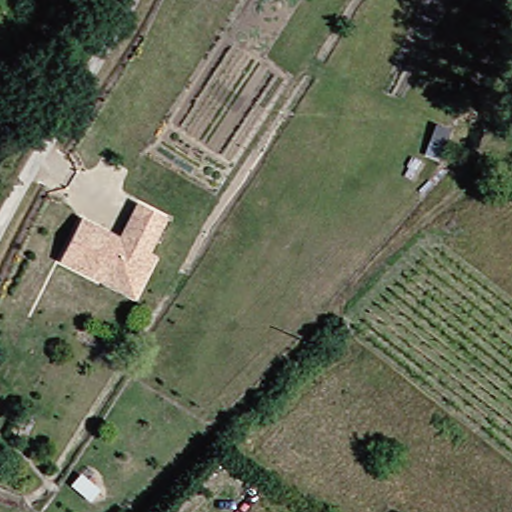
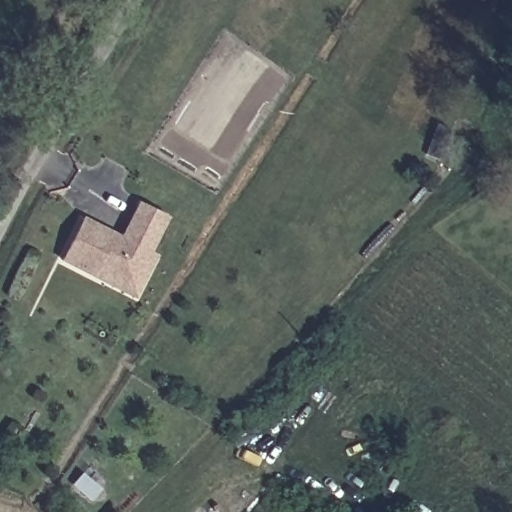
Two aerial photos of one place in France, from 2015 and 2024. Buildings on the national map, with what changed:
unchanged [(134,293),(92,273),(61,258),(81,216),(120,235),(137,199),(166,212),(147,249),(155,252),(134,293)]
unchanged [(114,509),(111,512),(99,512),(89,505),(96,496),(114,509)]

